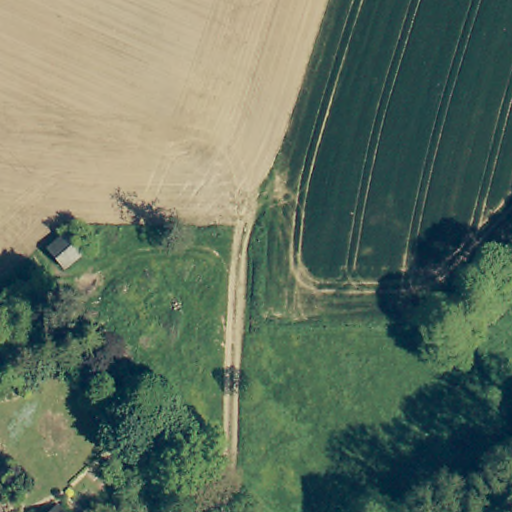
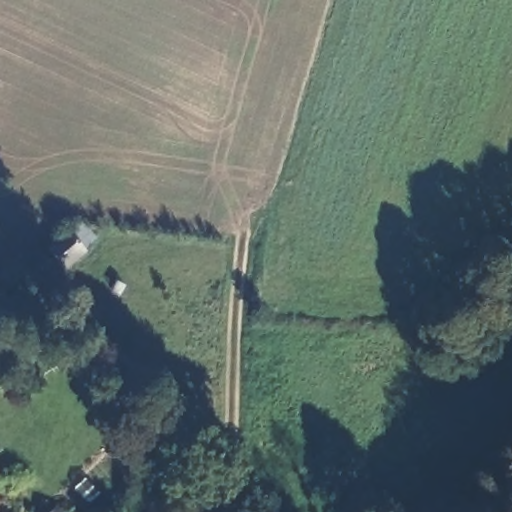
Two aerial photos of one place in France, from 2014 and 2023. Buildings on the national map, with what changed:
unchanged [(79,235),(85,241),(80,246),(84,251),(60,275),(42,256),(66,234),(73,241),(79,235)]
unchanged [(77,512),(50,512),(64,499),(77,512)]

